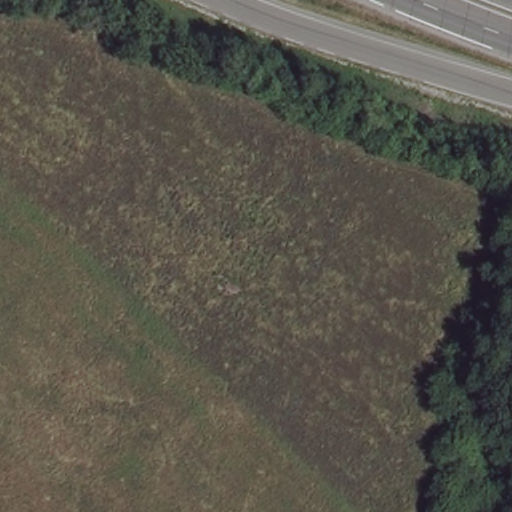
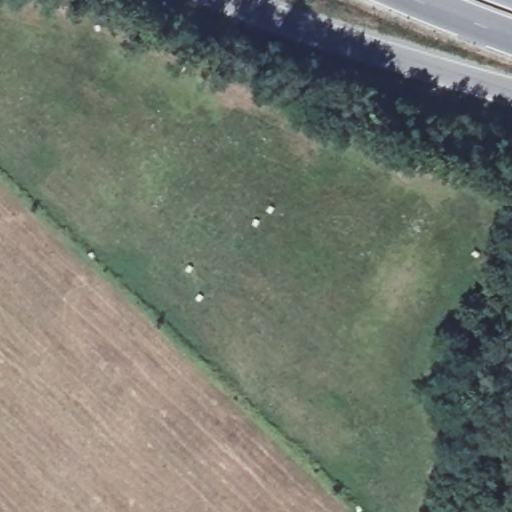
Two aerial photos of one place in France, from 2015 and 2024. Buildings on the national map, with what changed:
[]

